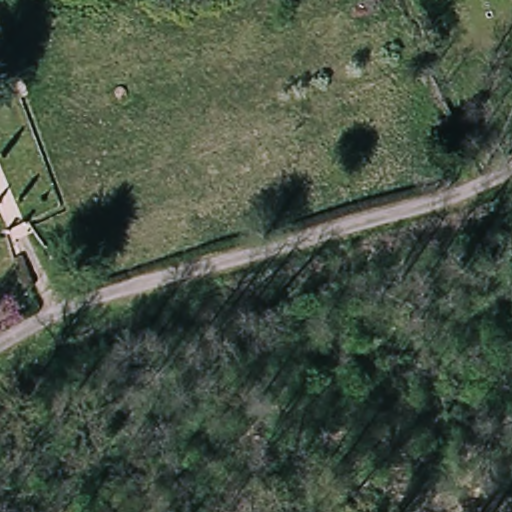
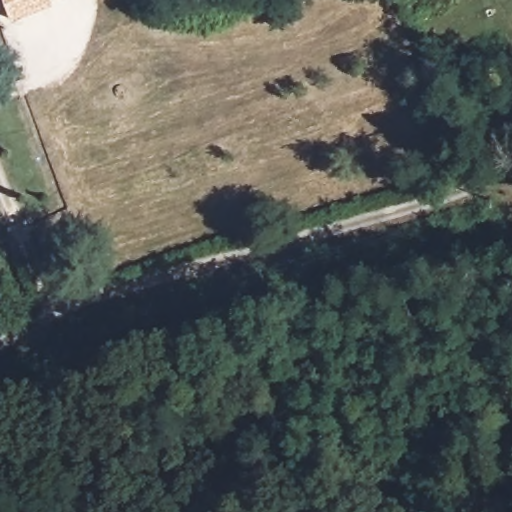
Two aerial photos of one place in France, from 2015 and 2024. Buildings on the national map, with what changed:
new [(45,6),(11,19),(3,0),(49,0),(43,3),(45,6)]

